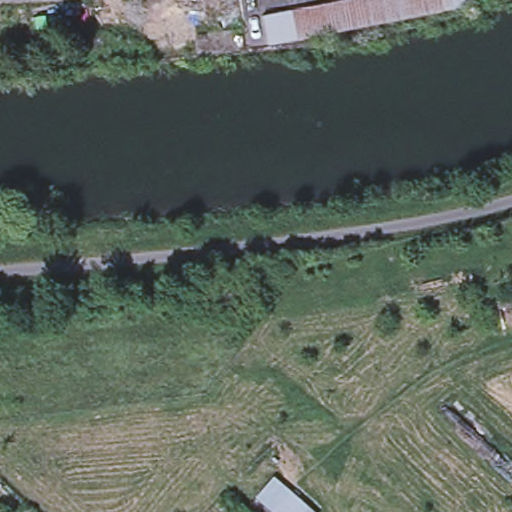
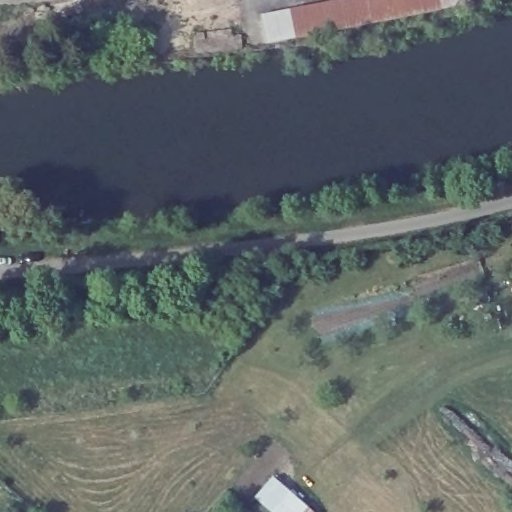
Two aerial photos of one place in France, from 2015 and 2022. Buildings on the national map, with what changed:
unchanged [(295,38),(269,43),(265,22),(264,16),(288,11),(287,10),(339,0),(470,0),(471,4),(438,9),(439,11),(295,38)]
unchanged [(193,34),(203,33),(205,31),(233,29),(235,36),(242,36),(242,48),(207,51),(196,52),(193,34)]
unchanged [(317,512),(276,512),(256,495),(273,475),(317,512)]

